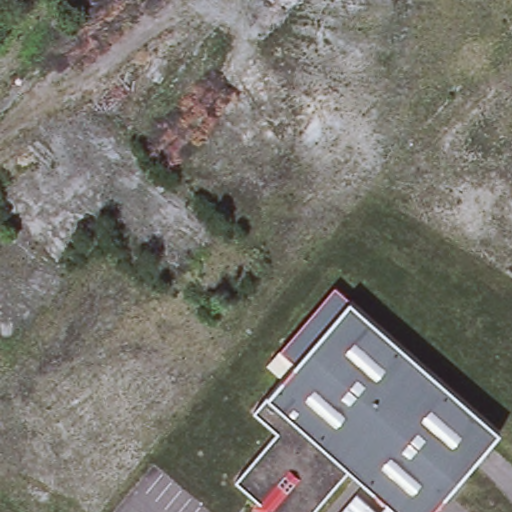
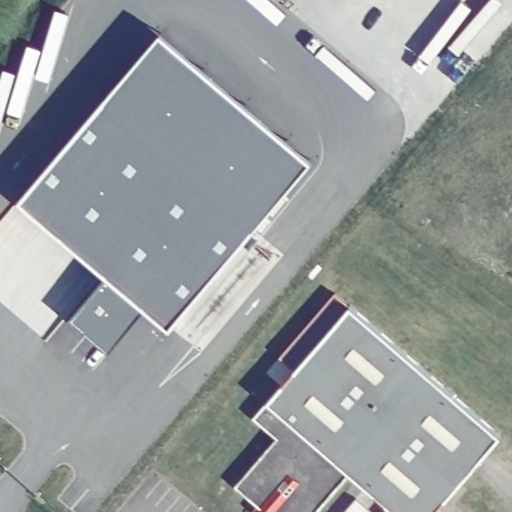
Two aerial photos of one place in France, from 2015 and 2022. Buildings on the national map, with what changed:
new [(308,169),(167,337),(140,314),(106,356),(72,322),(105,282),(18,207),(159,38),(308,169)]
unchanged [(347,306),(498,436),(432,512),(394,512),(348,473),(266,401),(347,306)]
unchanged [(315,512),(264,512),(234,486),(275,439),(252,418),(266,401),(348,473),(315,512)]
unchanged [(354,498),(371,512),(342,512),(354,498)]
unchanged [(385,509),(389,512),(382,512),(385,509)]

